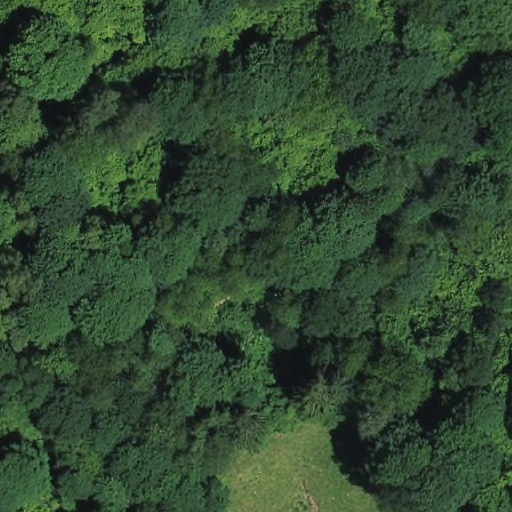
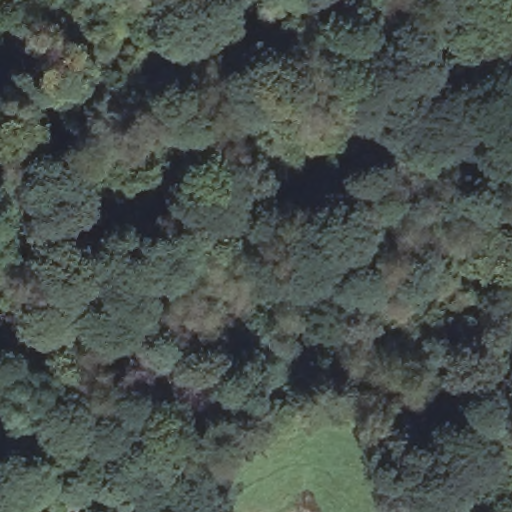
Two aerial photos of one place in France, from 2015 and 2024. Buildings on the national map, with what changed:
[]

